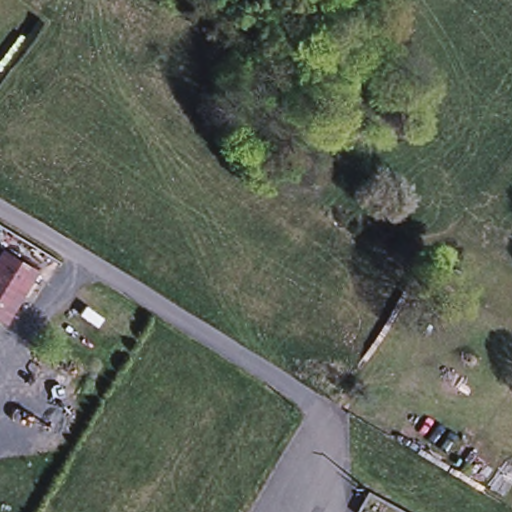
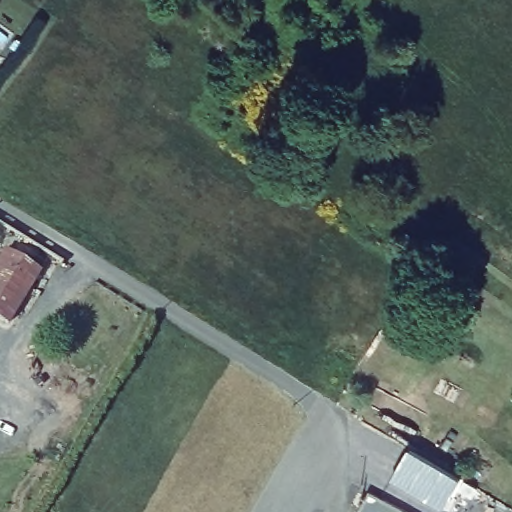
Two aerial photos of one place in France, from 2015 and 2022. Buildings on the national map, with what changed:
unchanged [(40,270),(9,320),(0,315),(0,257),(5,249),(28,262),(40,270)]
new [(413,450),(465,480),(446,511),(395,480),(413,450)]

